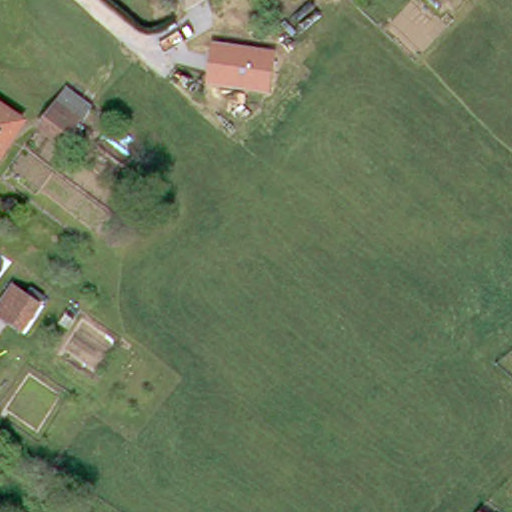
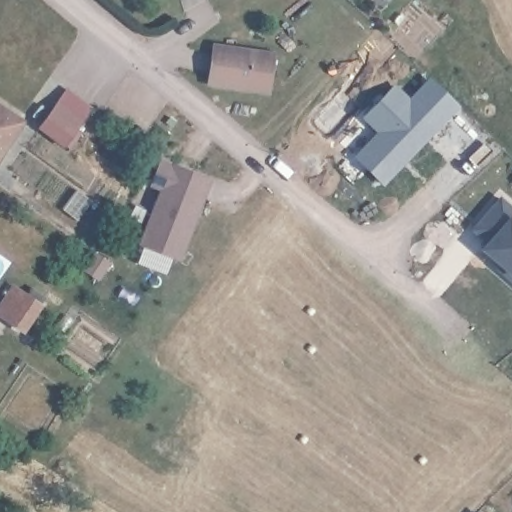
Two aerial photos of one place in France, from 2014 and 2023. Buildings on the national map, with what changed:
unchanged [(276,51),(271,95),(207,87),(212,42),(276,51)]
new [(435,81),(458,103),(383,182),(356,156),(380,129),(366,117),(394,87),(413,104),(435,81)]
unchanged [(91,106),(65,143),(42,127),(69,90),(91,106)]
unchanged [(0,155),(0,99),(26,116),(0,155)]
new [(149,185),(158,158),(211,179),(182,260),(138,245),(158,189),(149,185)]
new [(507,278),(510,274),(479,249),(486,242),(471,228),(500,193),(512,204),(512,283),(507,278)]
unchanged [(45,304),(28,329),(3,311),(19,286),(45,304)]

